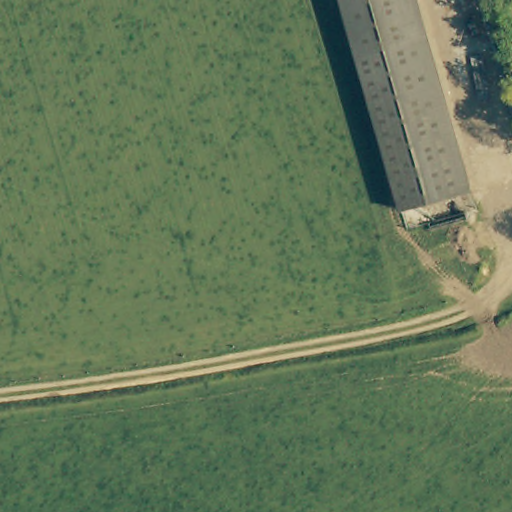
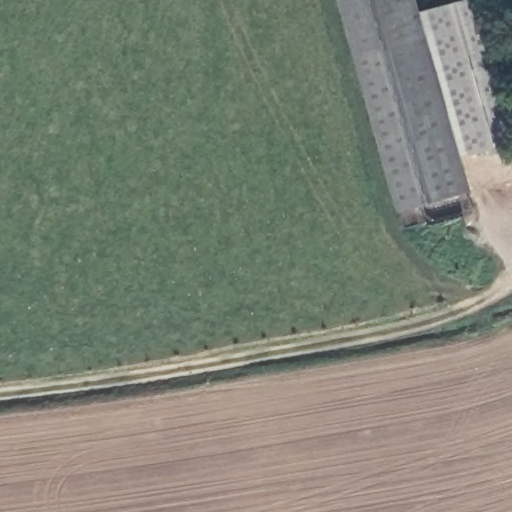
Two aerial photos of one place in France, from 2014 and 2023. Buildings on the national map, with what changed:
unchanged [(460,193),(399,209),(345,0),(409,0),(460,193)]
new [(512,105),(512,142),(451,159),(412,12),(457,0),(484,0),(512,105)]

